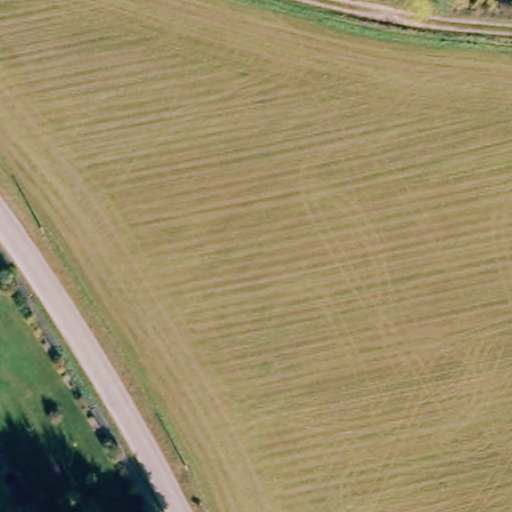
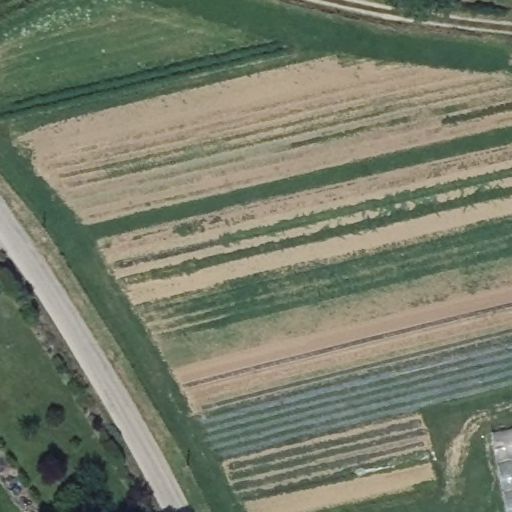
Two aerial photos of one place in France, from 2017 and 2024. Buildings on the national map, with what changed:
new [(512,430),(512,512),(505,512),(489,436),(512,430)]

